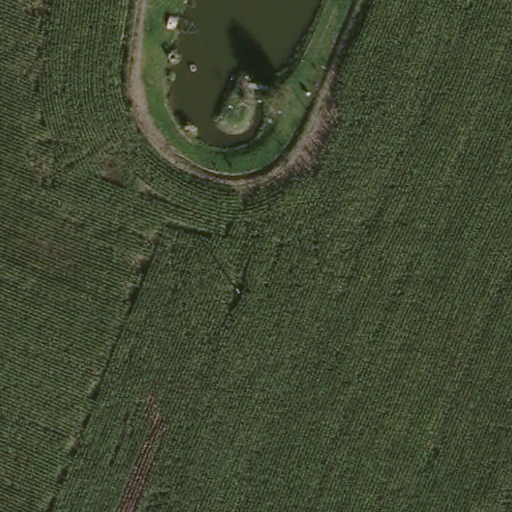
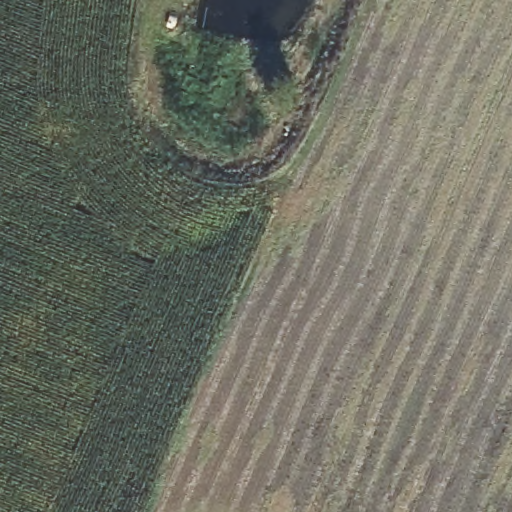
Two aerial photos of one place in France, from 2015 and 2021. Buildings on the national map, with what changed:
[]

